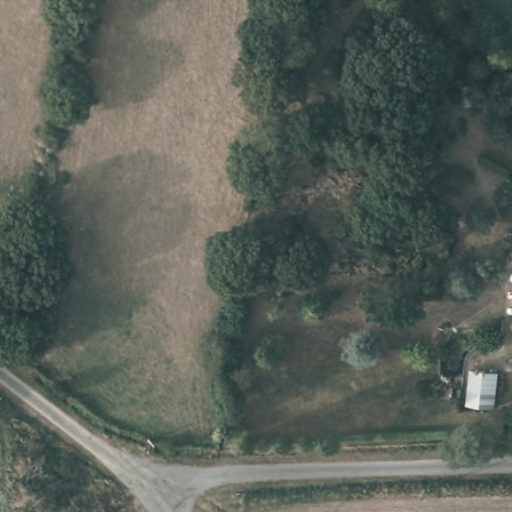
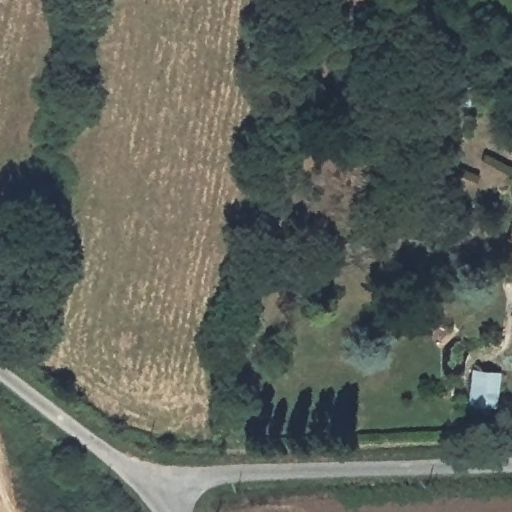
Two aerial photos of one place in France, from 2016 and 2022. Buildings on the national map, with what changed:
unchanged [(494,408),(468,406),(473,367),(495,367),(494,408)]

